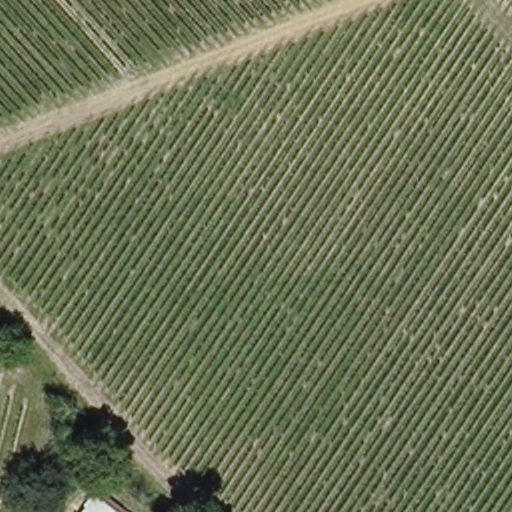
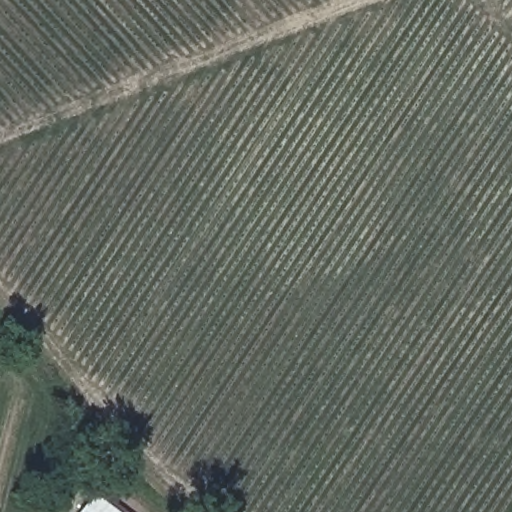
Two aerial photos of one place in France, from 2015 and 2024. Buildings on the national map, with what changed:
unchanged [(123,512),(88,512),(91,509),(87,507),(97,493),(123,512)]

